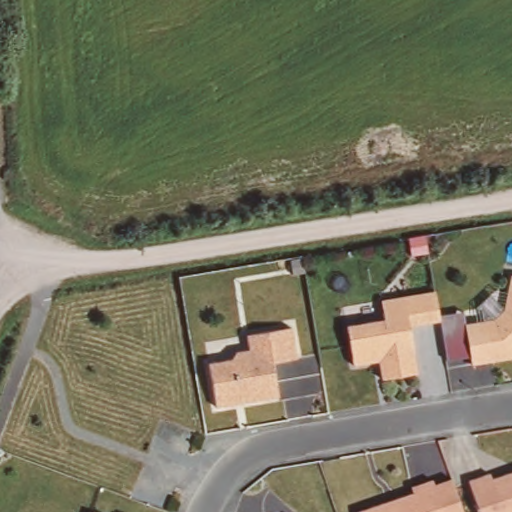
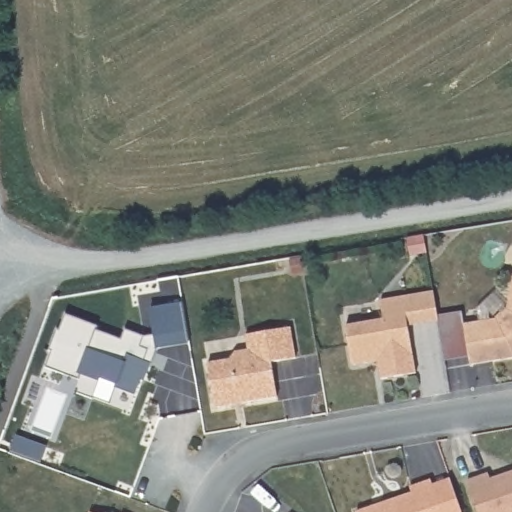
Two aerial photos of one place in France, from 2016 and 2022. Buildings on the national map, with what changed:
unchanged [(302,275),(291,276),(288,261),(300,260),(302,275)]
unchanged [(463,326),(496,320),(506,310),(512,280),(512,358),(470,366),(463,326)]
unchanged [(352,372),(345,332),(383,326),(380,307),(433,297),(438,327),(407,332),(415,380),(380,386),(377,367),(367,368),(352,372)]
new [(154,336),(149,310),(181,305),(188,344),(157,349),(151,367),(149,366),(149,365),(144,363),(148,351),(140,348),(143,337),(154,336)]
new [(79,383),(64,378),(46,372),(51,356),(48,355),(56,333),(58,334),(64,318),(97,329),(95,332),(120,341),(124,331),(143,337),(140,348),(148,351),(144,363),(149,365),(144,381),(140,380),(135,396),(116,389),(117,386),(100,380),(99,383),(66,372),(81,377),(79,383)]
unchanged [(214,408),(207,364),(229,361),(235,353),(248,351),(245,336),(290,328),(295,359),(271,363),(277,397),(242,403),(231,406),(214,408)]
unchanged [(466,482),(488,474),(490,480),(506,474),(512,472),(512,512),(477,512),(466,482)]
unchanged [(409,487),(430,481),(440,512),(356,512),(382,503),(394,499),(411,493),(409,487)]

